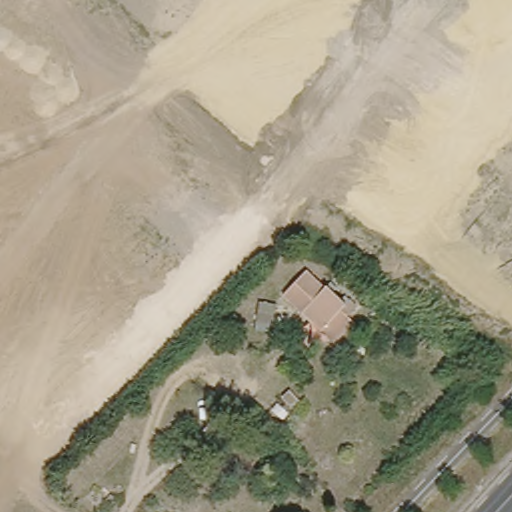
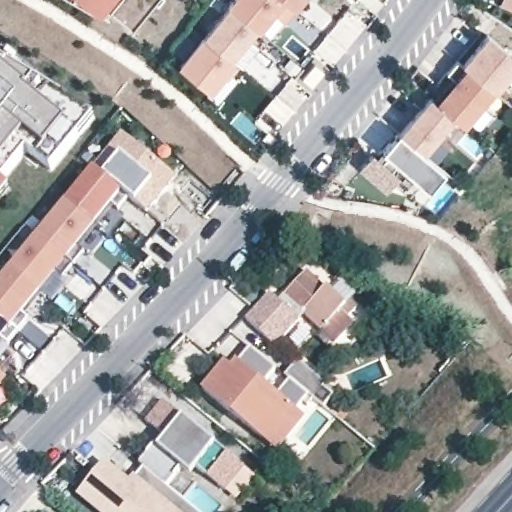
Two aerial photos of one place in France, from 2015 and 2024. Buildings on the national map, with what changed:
new [(76,0),(99,0),(92,8),(76,0)]
new [(299,0),(293,7),(294,8),(284,21),(272,12),(257,30),(255,28),(230,59),(204,38),(229,7),(228,6),(233,0),(299,0)]
new [(512,0),(512,7),(501,2),(502,0),(512,0)]
new [(512,55),(512,66),(492,89),(492,88),(462,63),(487,34),(512,55)]
new [(228,73),(224,70),(210,87),(181,62),(202,36),(204,38),(230,59),(236,64),(228,73)]
new [(7,56),(9,54),(66,100),(58,109),(3,62),(0,66),(0,51),(7,56)]
unchanged [(432,99),(452,76),(446,72),(457,59),(462,63),(492,88),(462,124),(450,115),(420,150),(399,132),(429,97),(432,99)]
new [(0,66),(3,62),(58,109),(66,100),(84,112),(93,118),(71,145),(50,170),(26,151),(0,182),(9,190),(0,201),(0,66)]
new [(375,158),(382,150),(398,131),(399,132),(420,150),(437,164),(422,183),(397,162),(390,170),(397,175),(385,189),(360,167),(370,154),(375,158)]
new [(178,180),(149,215),(135,202),(129,197),(108,180),(95,169),(123,135),(178,180)]
new [(95,169),(129,197),(119,210),(115,207),(81,249),(84,252),(64,278),(60,275),(25,316),(29,319),(8,345),(4,342),(0,347),(0,285),(95,169)]
unchanged [(346,306),(350,302),(357,309),(348,319),(342,312),(322,333),(285,297),(308,273),(326,290),(328,288),(346,306)]
new [(304,316),(277,347),(246,319),(270,293),(280,303),(285,297),(304,316)]
new [(325,407),(308,394),(295,408),(306,417),(277,449),(203,389),(225,361),(233,366),(237,362),(251,348),(276,369),(264,383),(279,395),(291,380),(284,375),(298,361),(325,383),(322,387),(332,396),(325,407)]
new [(6,378),(0,385),(0,374),(6,378)]
new [(78,495),(106,460),(130,480),(135,474),(137,477),(145,467),(139,463),(163,435),(146,421),(163,401),(183,417),(216,444),(245,468),(226,491),(211,476),(197,465),(191,473),(183,466),(167,485),(198,512),(99,512),(78,495)]

